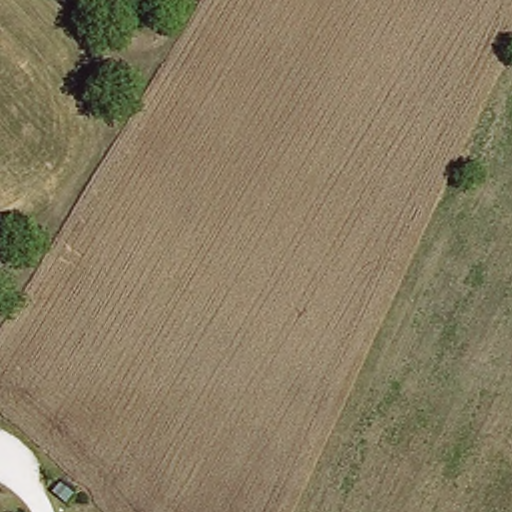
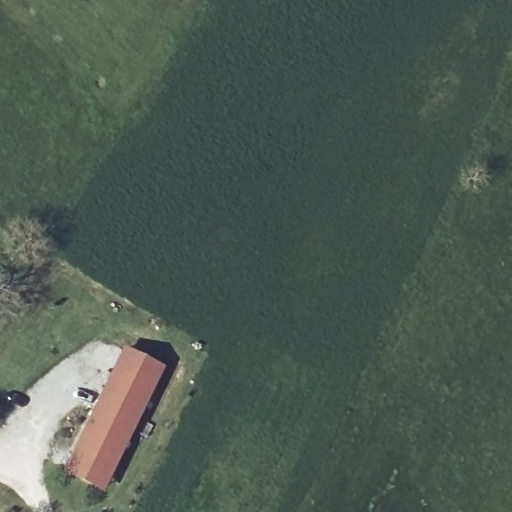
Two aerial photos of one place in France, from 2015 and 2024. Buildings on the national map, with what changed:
new [(123,347),(165,367),(104,490),(63,472),(123,347)]

